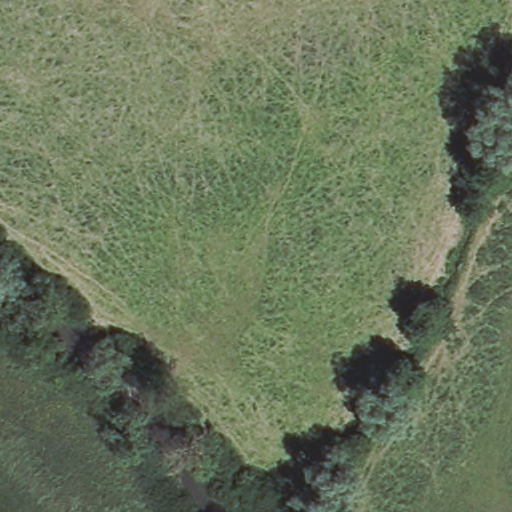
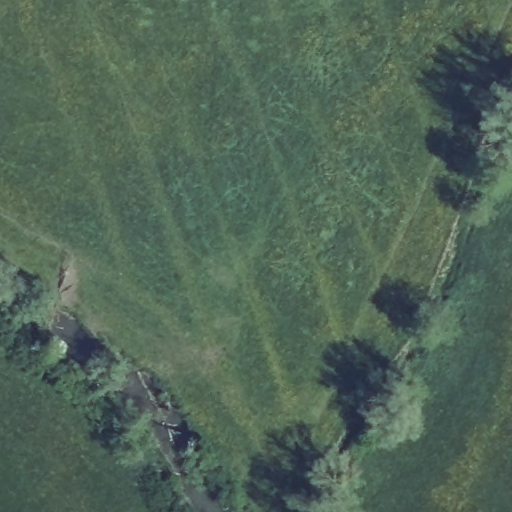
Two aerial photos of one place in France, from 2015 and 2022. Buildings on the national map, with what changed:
[]

